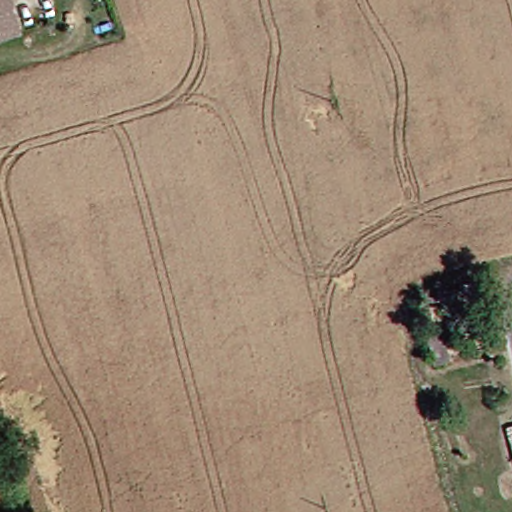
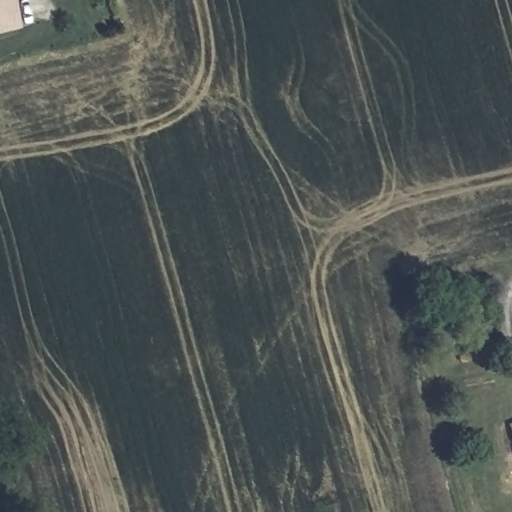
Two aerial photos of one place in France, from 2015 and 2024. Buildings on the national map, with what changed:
unchanged [(16,31),(0,34),(0,0),(9,0),(16,31)]
unchanged [(507,450),(506,445),(500,421),(512,418),(512,449),(507,450)]

